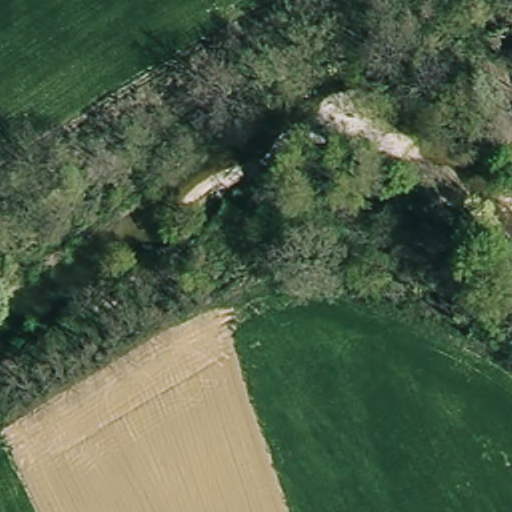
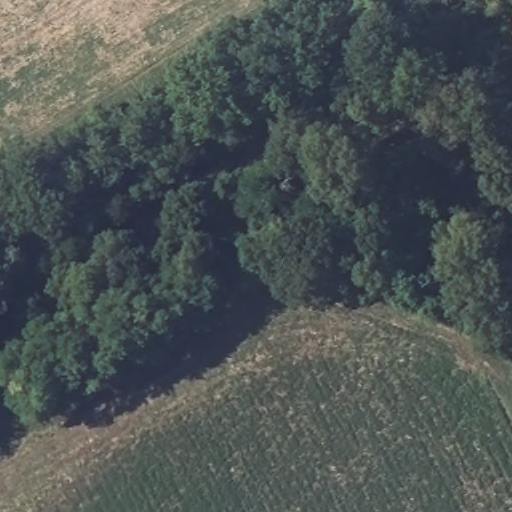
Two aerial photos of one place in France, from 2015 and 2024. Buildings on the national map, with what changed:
[]

